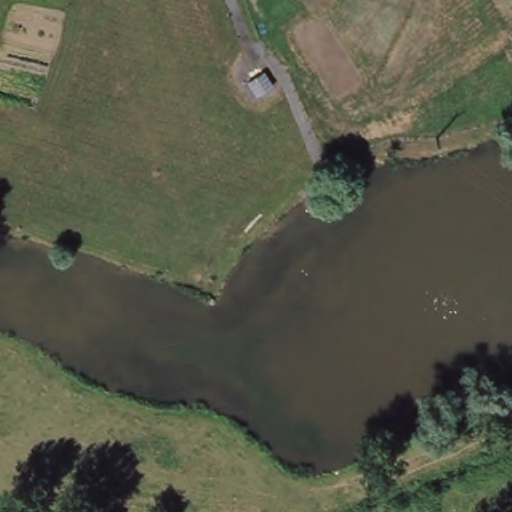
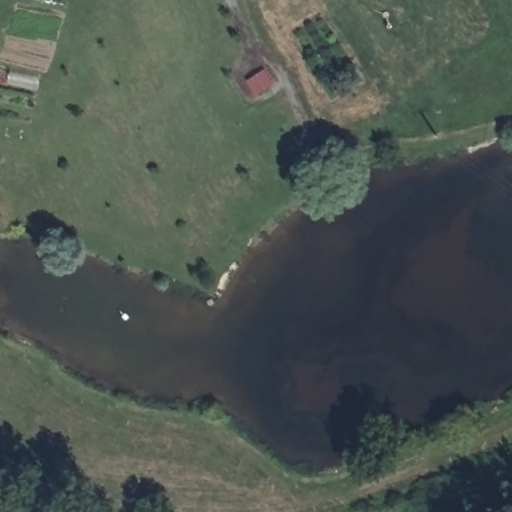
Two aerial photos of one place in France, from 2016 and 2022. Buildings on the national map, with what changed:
unchanged [(277,81),(263,92),(260,89),(251,96),(239,79),(261,60),(277,81)]

